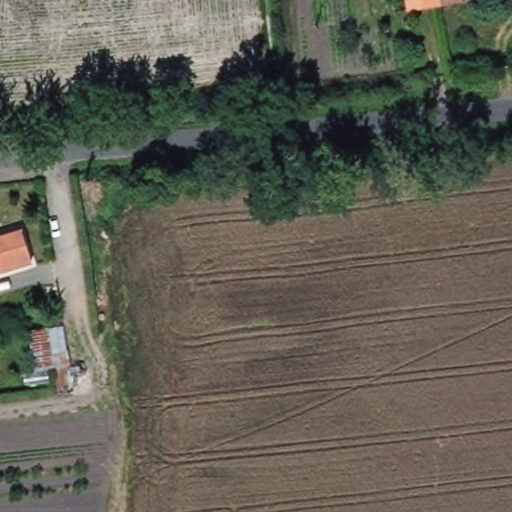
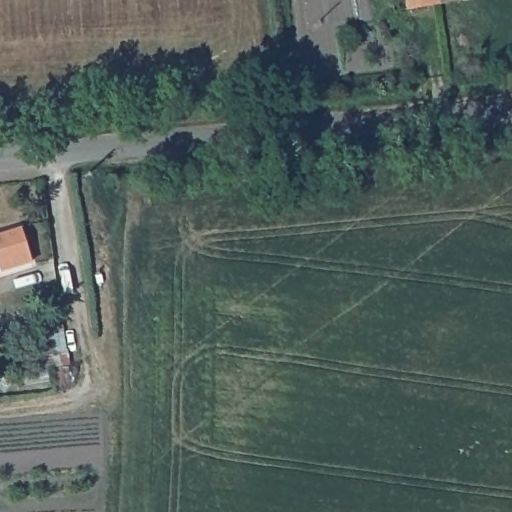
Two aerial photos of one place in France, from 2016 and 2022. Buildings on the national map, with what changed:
unchanged [(442,7),(394,14),(391,0),(441,0),(442,7)]
unchanged [(441,0),(482,0),(442,7),(441,0)]
unchanged [(31,263),(1,274),(0,268),(0,234),(18,228),(31,263)]
unchanged [(29,374),(21,332),(64,326),(66,369),(29,374)]

